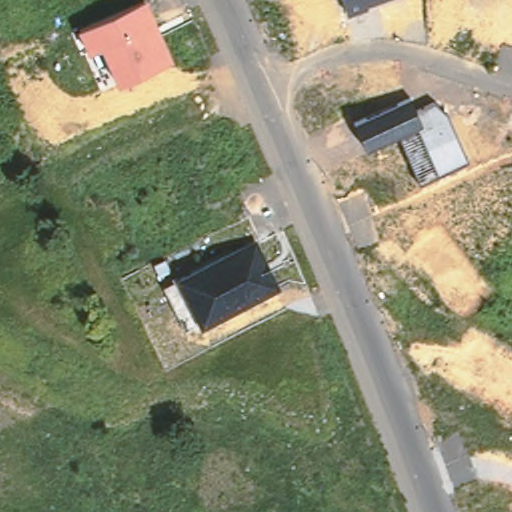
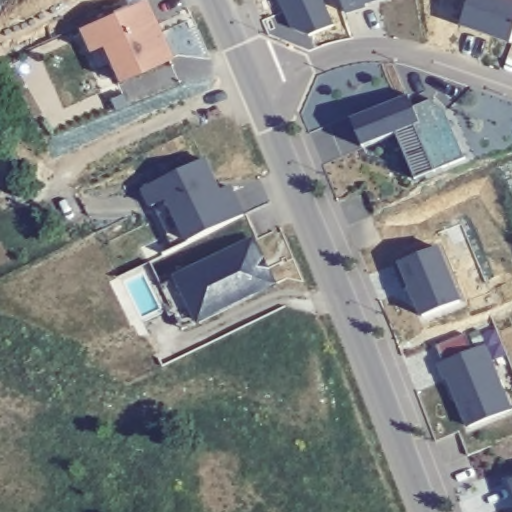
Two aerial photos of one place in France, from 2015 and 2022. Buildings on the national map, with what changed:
unchanged [(146,0),(170,60),(114,85),(99,50),(86,55),(76,30),(144,0),(146,0)]
unchanged [(376,0),(364,4),(365,10),(345,16),(340,0),(376,0)]
new [(459,27),(469,0),(512,0),(512,38),(510,45),(459,27)]
unchanged [(351,120),(410,96),(415,109),(434,101),(447,114),(466,160),(437,173),(415,182),(395,135),(364,149),(351,120)]
new [(222,191),(234,185),(247,215),(188,244),(173,250),(155,207),(150,210),(142,190),(207,159),(222,191)]
unchanged [(255,243),(274,286),(197,321),(177,282),(255,243)]
new [(462,301),(420,318),(409,290),(405,290),(394,263),(399,261),(439,245),(462,301)]
new [(484,347),(512,413),(470,430),(449,380),(447,382),(440,366),(484,347)]
new [(512,478),(512,488),(509,480),(512,478)]

